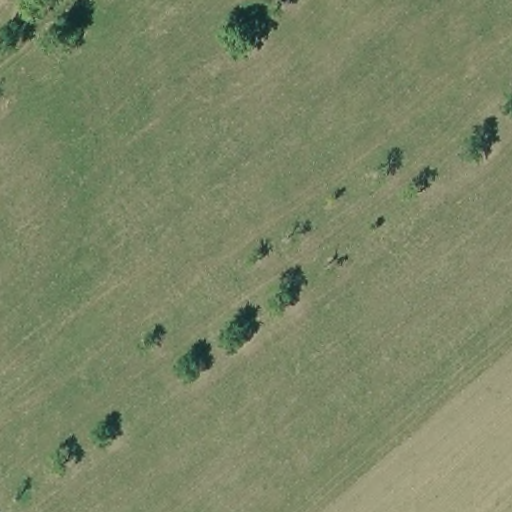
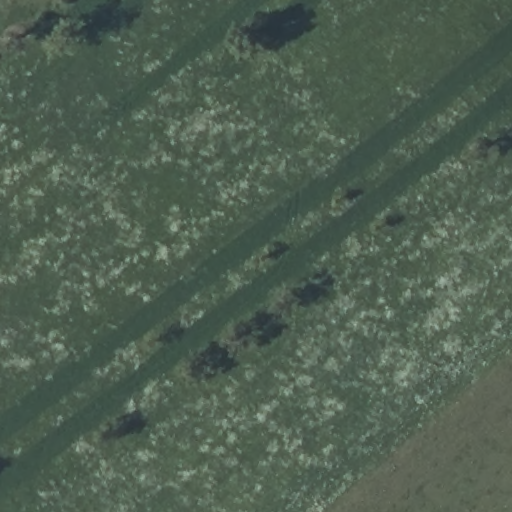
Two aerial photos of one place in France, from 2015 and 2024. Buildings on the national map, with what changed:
[]

